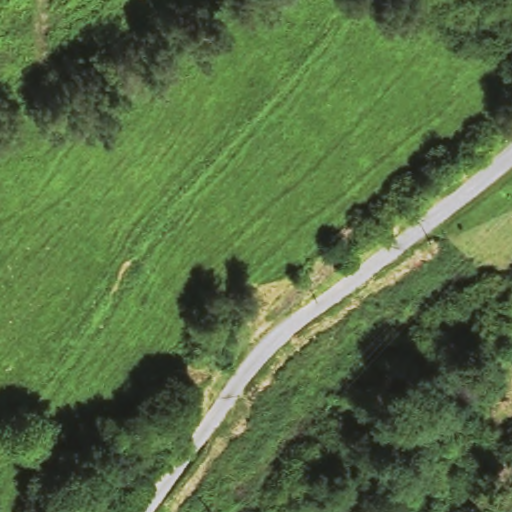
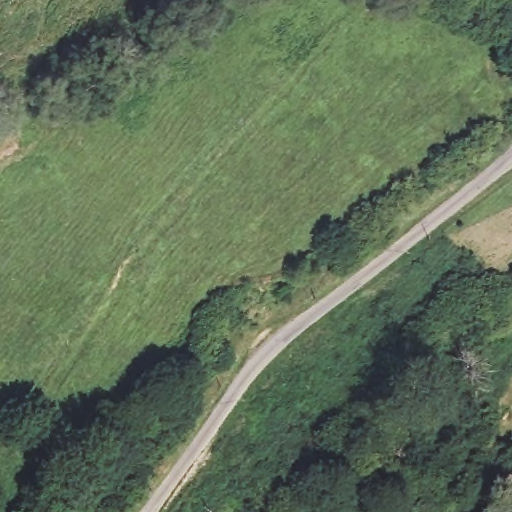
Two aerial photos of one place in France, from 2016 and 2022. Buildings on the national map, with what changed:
[]

